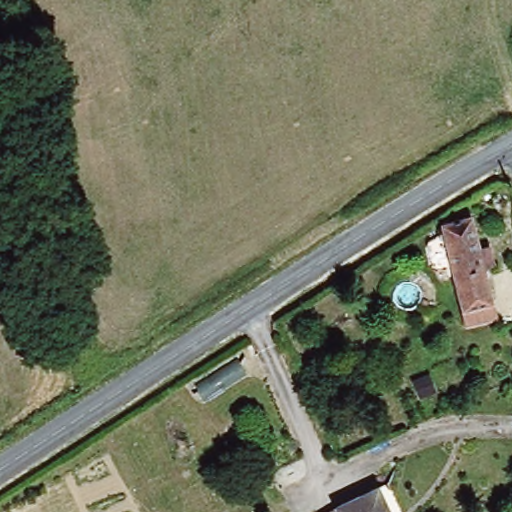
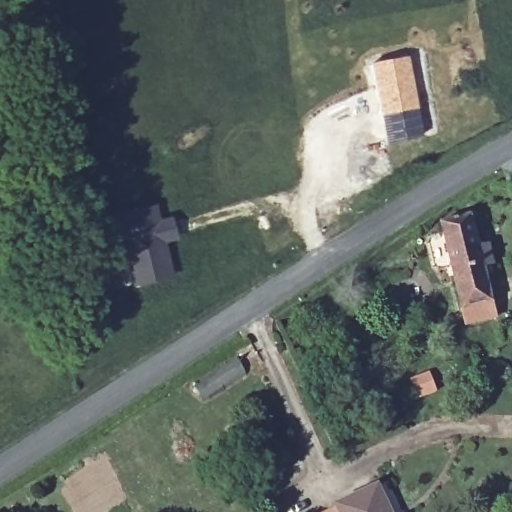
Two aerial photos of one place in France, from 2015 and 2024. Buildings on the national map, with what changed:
new [(369,66),(408,57),(417,109),(381,115),(369,66)]
new [(145,205),(156,206),(172,216),(178,240),(165,243),(174,277),(140,285),(138,278),(130,280),(115,216),(146,208),(145,205)]
unchanged [(483,219),(496,311),(467,314),(454,223),(483,219)]
unchanged [(345,508),(380,490),(389,512),(337,512),(345,508)]

